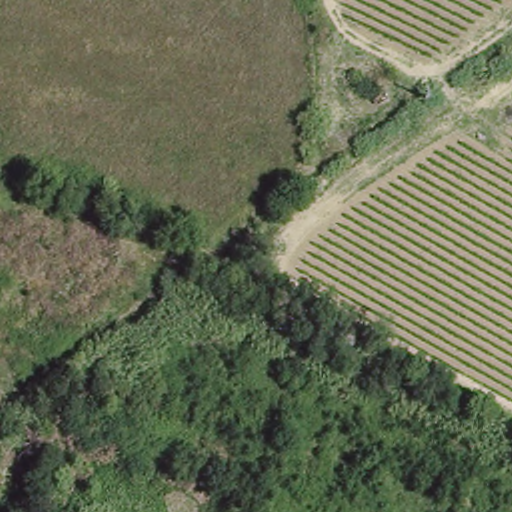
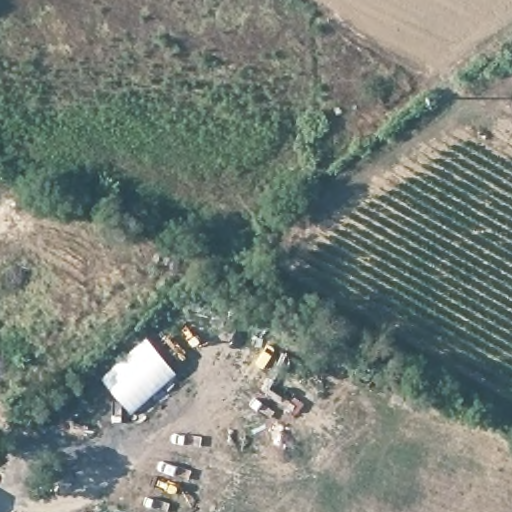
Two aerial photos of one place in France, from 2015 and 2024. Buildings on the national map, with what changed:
new [(130,412),(100,377),(146,337),(176,373),(130,412)]

